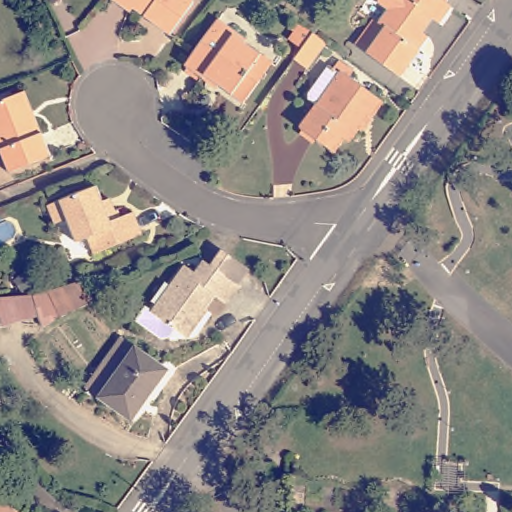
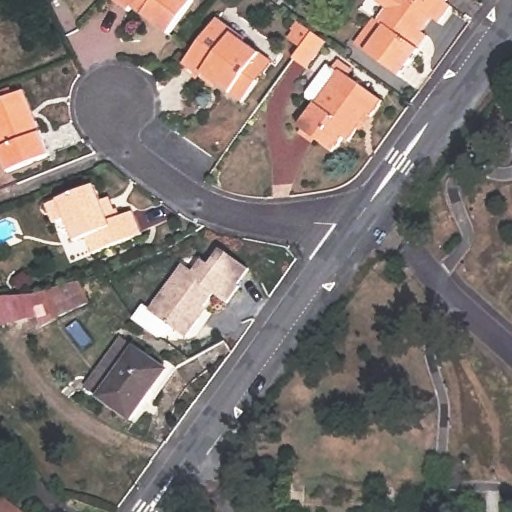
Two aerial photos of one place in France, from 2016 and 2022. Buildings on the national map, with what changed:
unchanged [(193,3),(169,37),(131,10),(128,15),(107,0),(189,0),(193,3)]
unchanged [(422,51),(404,76),(370,53),(361,46),(379,20),(383,23),(400,0),(449,0),(455,4),(452,7),(442,21),(436,17),(424,33),(430,36),(420,50),(422,51)]
unchanged [(259,85),(244,106),(218,87),(220,85),(207,76),(203,81),(185,68),(218,22),(245,41),(242,45),(259,58),(272,67),(259,85)]
unchanged [(294,60),(301,50),(291,42),(297,35),(295,34),(301,25),(313,33),(327,43),(308,70),(294,60)]
unchanged [(333,70),(391,110),(379,125),(373,121),(354,147),(349,144),(339,158),(304,133),(321,109),(314,103),(312,98),(333,70)]
unchanged [(7,150),(0,153),(0,104),(28,93),(32,91),(43,117),(59,155),(17,172),(7,150)]
unchanged [(132,220),(143,215),(152,238),(101,258),(96,245),(89,248),(79,223),(66,227),(58,207),(106,189),(112,204),(121,200),(125,212),(129,211),(132,220)]
unchanged [(201,318),(187,337),(151,311),(185,265),(195,272),(204,260),(240,286),(228,303),(215,293),(204,308),(207,310),(201,318)]
unchanged [(70,288),(83,311),(50,323),(0,328),(0,303),(33,297),(70,288)]
unchanged [(115,366),(124,372),(141,351),(172,374),(136,422),(95,392),(115,366)]
unchanged [(0,512),(0,501),(15,512),(0,512)]

